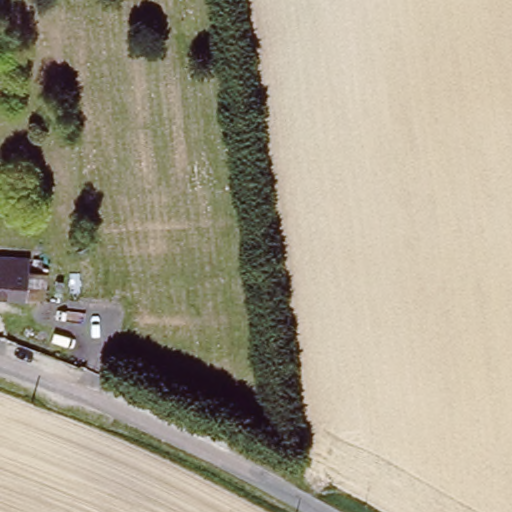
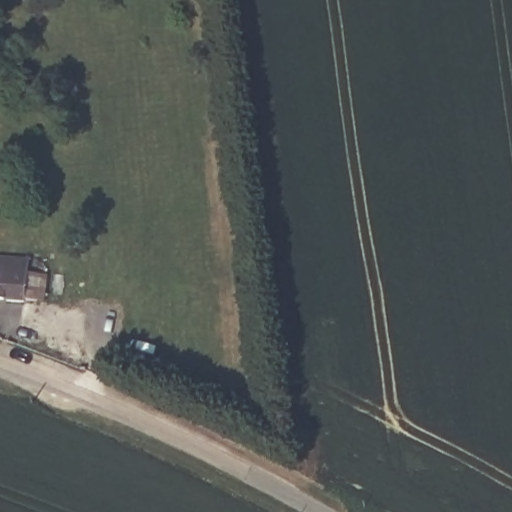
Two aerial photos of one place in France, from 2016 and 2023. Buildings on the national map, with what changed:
unchanged [(0,255),(25,256),(28,281),(44,281),(42,307),(0,299),(0,255)]

